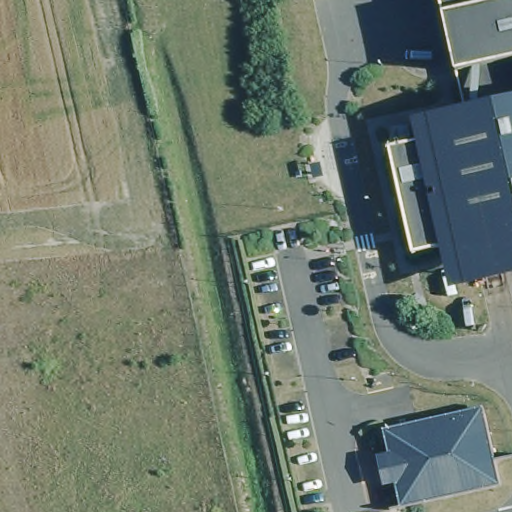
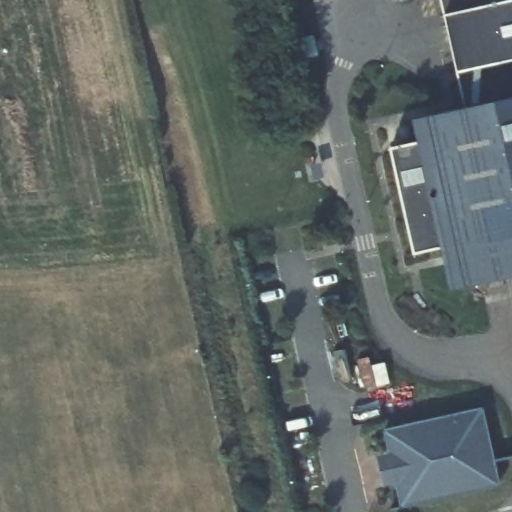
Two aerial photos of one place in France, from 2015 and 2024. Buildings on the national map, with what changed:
unchanged [(450,290),(442,249),(415,254),(390,148),(420,142),(414,121),(466,108),(459,71),(445,15),(442,0),(512,0),(512,277),(450,290)]
unchanged [(377,452),(389,449),(383,426),(482,403),(500,479),(401,503),(395,479),(383,481),(377,452)]

